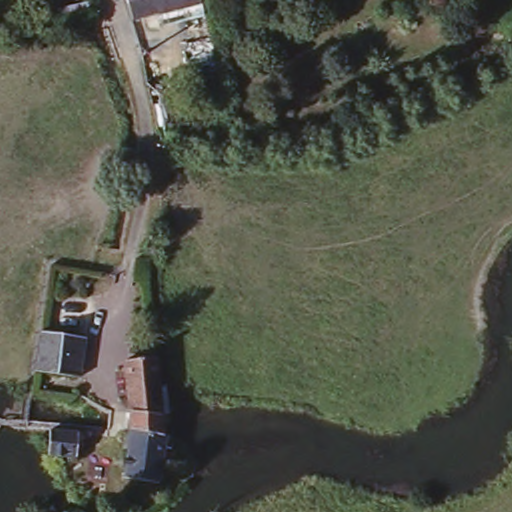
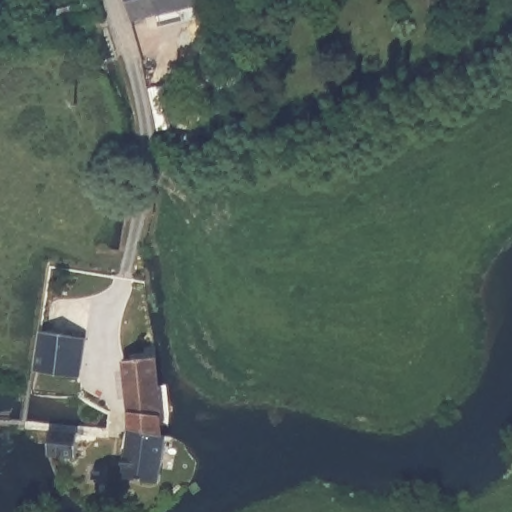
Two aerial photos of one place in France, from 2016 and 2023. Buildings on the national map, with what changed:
unchanged [(122,0),(221,0),(222,3),(128,22),(122,0)]
unchanged [(40,330),(81,331),(75,372),(35,368),(40,330)]
unchanged [(151,479),(122,478),(127,405),(126,397),(125,372),(125,361),(153,360),(157,404),(155,427),(151,479)]
unchanged [(76,459),(47,457),(49,432),(76,433),(76,459)]

